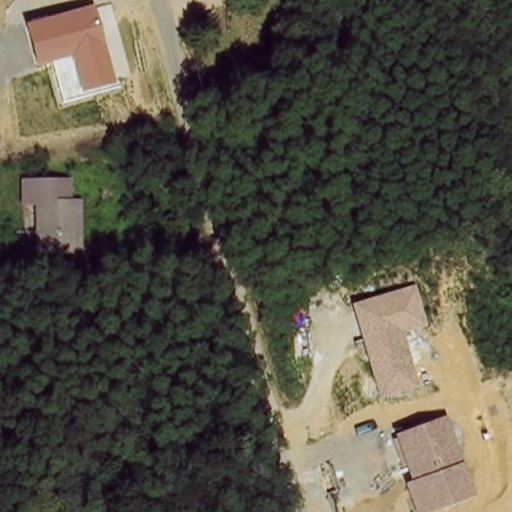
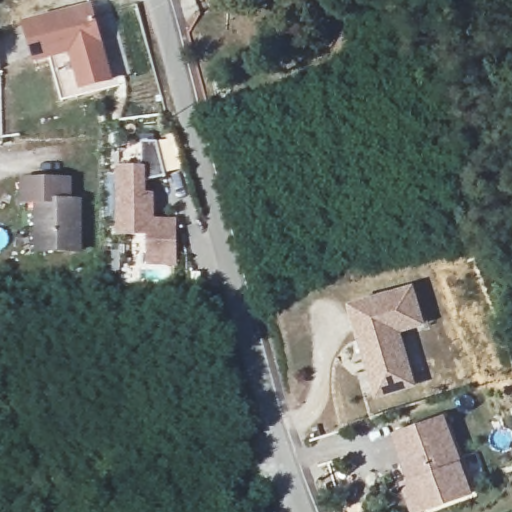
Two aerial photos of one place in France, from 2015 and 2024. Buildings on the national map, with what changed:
unchanged [(93,5),(114,87),(61,101),(50,61),(36,65),(24,24),(93,5)]
new [(145,165),(144,165),(144,138),(159,138),(168,172),(145,178),(145,191),(153,191),(154,218),(177,218),(177,259),(151,260),(151,230),(122,230),(121,165),(145,165)]
unchanged [(20,205),(17,182),(63,176),(66,198),(76,196),(81,234),(83,246),(40,252),(38,236),(34,204),(20,205)]
unchanged [(111,262),(112,274),(92,276),(90,265),(111,262)]
unchanged [(415,284),(429,325),(403,332),(419,386),(378,397),(351,303),(415,284)]
unchanged [(409,484),(418,481),(401,435),(446,420),(474,496),(430,512),(421,512),(409,484)]

